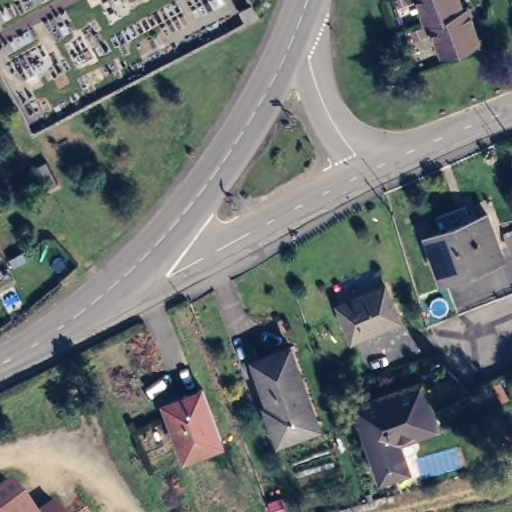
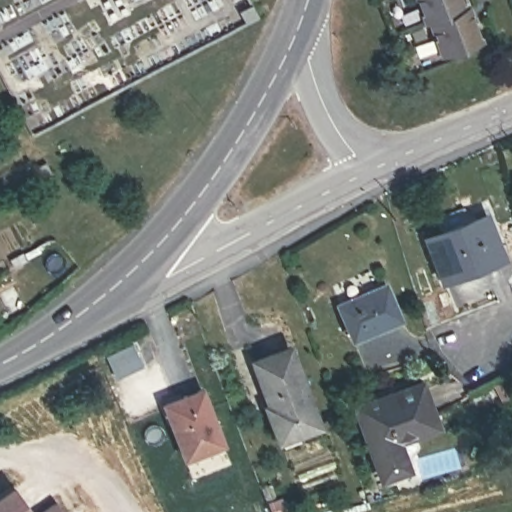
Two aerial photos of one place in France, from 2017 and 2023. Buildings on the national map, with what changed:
unchanged [(465,9),(475,44),(437,56),(426,23),(420,25),(412,0),(453,0),(457,12),(465,9)]
unchanged [(503,0),(512,0),(512,27),(503,0)]
unchanged [(475,218),(489,256),(432,278),(417,239),(475,218)]
unchanged [(389,320),(345,339),(332,305),(377,289),(389,320)]
unchanged [(310,432),(275,446),(248,369),(282,356),(310,432)]
unchanged [(421,418),(399,426),(404,441),(402,441),(405,451),(402,457),(392,461),(397,475),(372,483),(347,413),(412,391),(421,418)]
unchanged [(212,447),(177,459),(156,407),(193,393),(212,447)]
unchanged [(0,491),(18,512),(0,512),(0,491)]

